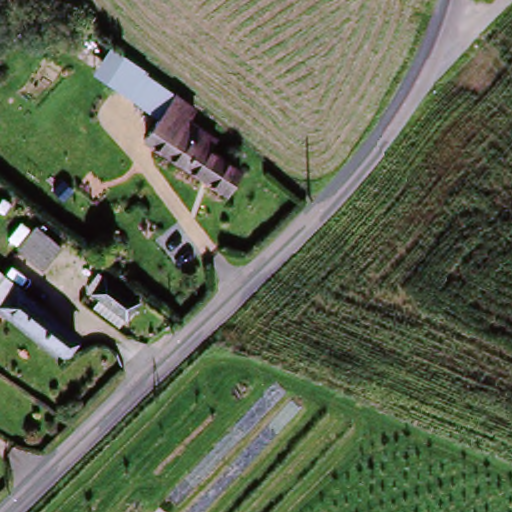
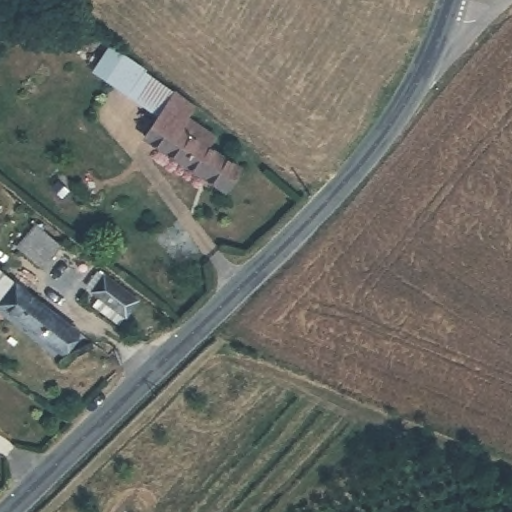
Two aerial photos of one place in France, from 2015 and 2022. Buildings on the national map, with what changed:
unchanged [(169,96),(157,117),(101,85),(115,63),(169,96)]
unchanged [(192,117),(218,131),(210,142),(251,167),(236,191),(146,139),(157,117),(169,96),(196,110),(192,117)]
unchanged [(32,223),(57,244),(37,269),(11,248),(32,223)]
unchanged [(80,332),(65,354),(0,308),(0,276),(80,332)]
unchanged [(127,314),(92,292),(102,277),(137,298),(127,314)]

